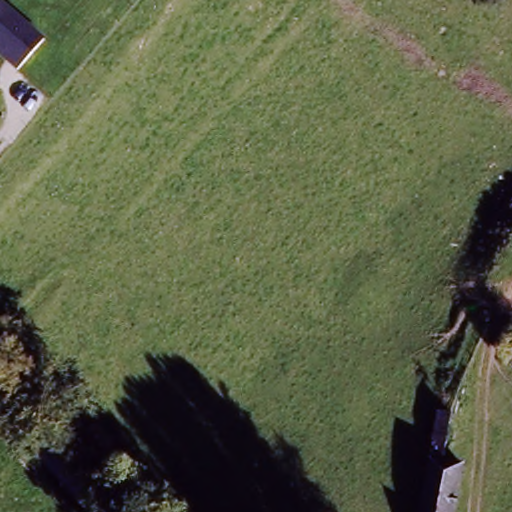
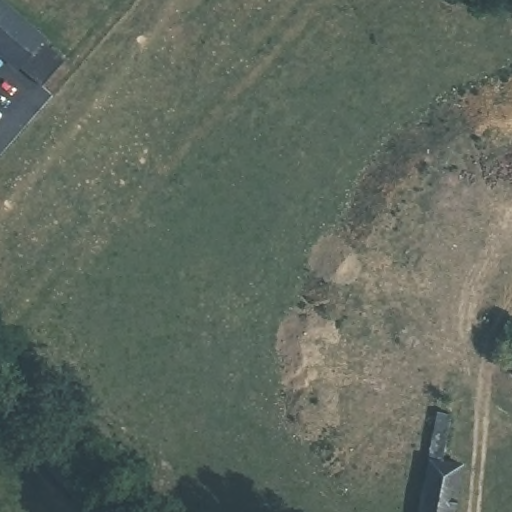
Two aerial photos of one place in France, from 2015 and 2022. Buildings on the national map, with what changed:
unchanged [(18,70),(0,55),(0,0),(2,0),(45,34),(18,70)]
unchanged [(507,362),(512,356),(512,366),(507,362)]
unchanged [(420,512),(429,463),(437,413),(448,415),(440,465),(462,469),(454,512),(420,512)]

